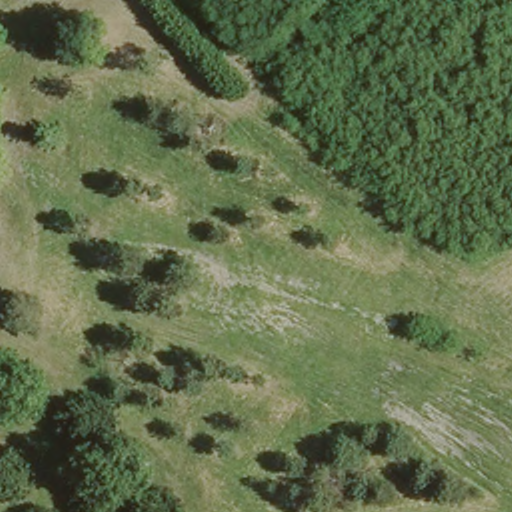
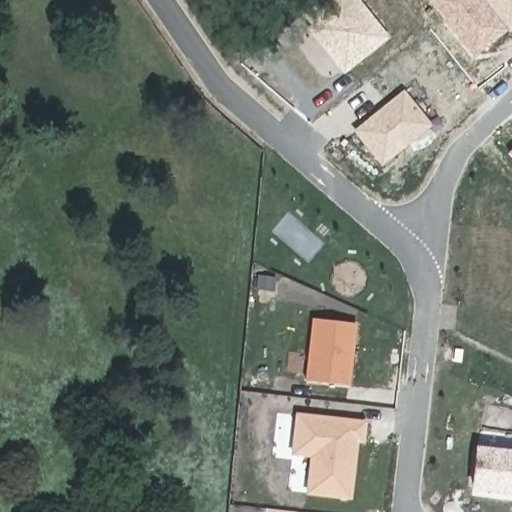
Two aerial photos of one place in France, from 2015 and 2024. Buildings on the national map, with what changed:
new [(307,30),(312,26),(302,15),(320,0),(360,0),(390,37),(342,74),(307,30)]
new [(511,34),(508,31),(474,57),(427,0),(512,0),(512,33),(511,34)]
new [(405,89),(433,127),(381,167),(352,132),(405,89)]
new [(508,151),(512,147),(512,155),(508,151)]
new [(357,324),(350,387),(305,381),(312,319),(357,324)]
new [(365,442),(358,442),(352,501),(306,496),(311,460),(290,457),(295,413),(366,421),(365,442)]
new [(512,452),(512,494),(471,491),(476,448),(512,452)]

